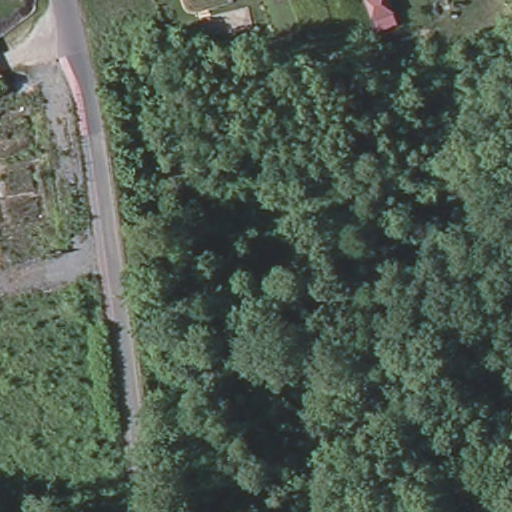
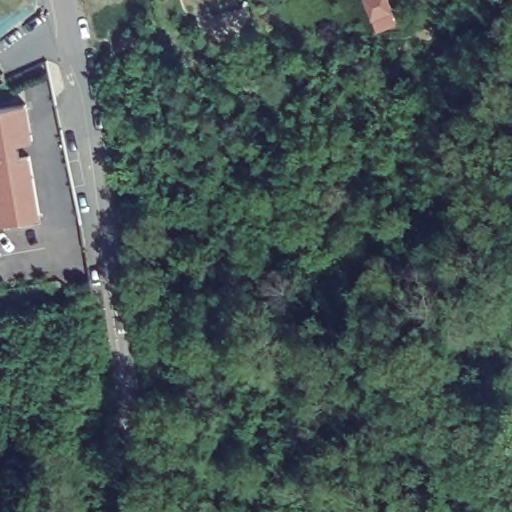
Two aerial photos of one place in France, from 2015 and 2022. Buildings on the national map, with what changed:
new [(34,140),(18,143),(21,157),(31,156),(42,216),(0,224),(0,203),(2,202),(0,194),(0,109),(27,104),(34,140)]

